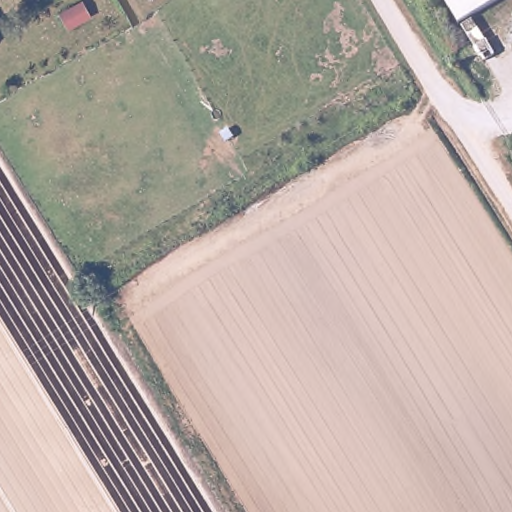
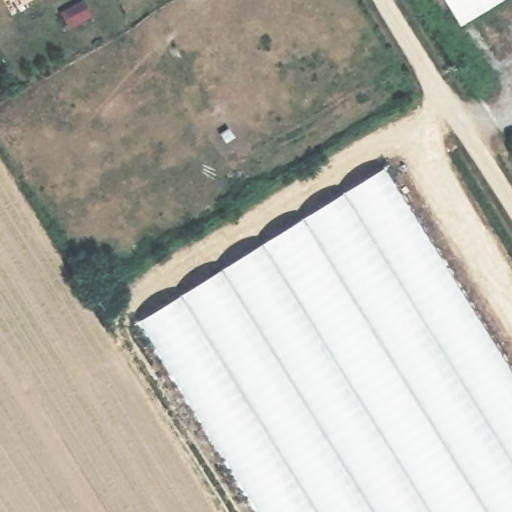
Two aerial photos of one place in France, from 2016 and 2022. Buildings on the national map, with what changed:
unchanged [(444,0),(502,0),(460,27),(444,0)]
new [(140,318),(385,167),(512,370),(512,512),(261,512),(140,318)]
demolished [(366,350),(379,372),(363,380),(351,360),(366,350)]

